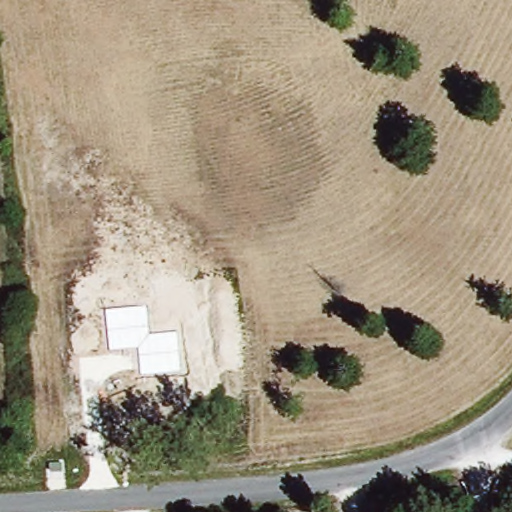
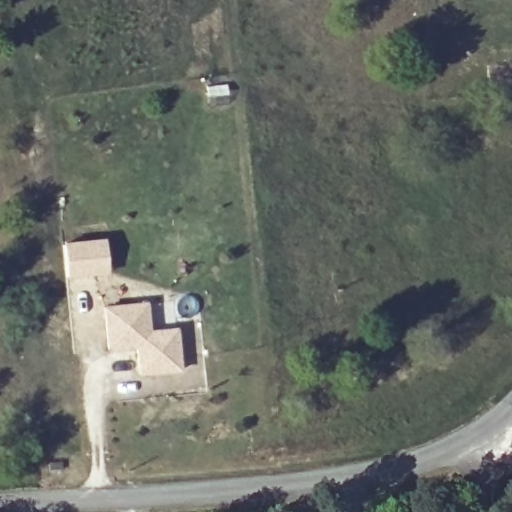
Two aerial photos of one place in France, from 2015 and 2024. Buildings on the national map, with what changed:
new [(110,239),(111,270),(104,272),(69,273),(68,240),(110,239)]
new [(149,303),(151,330),(180,328),(183,374),(141,378),(138,349),(107,353),(103,307),(149,303)]

